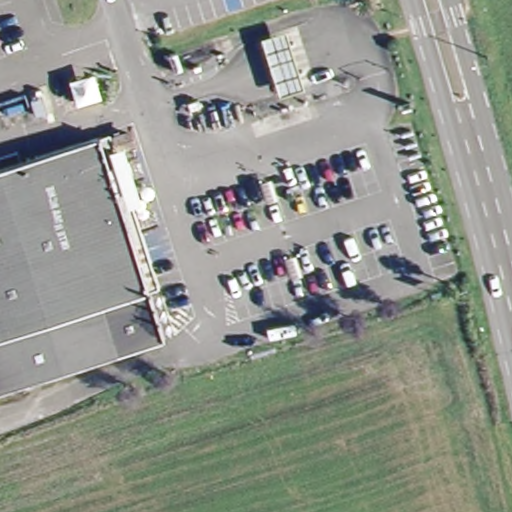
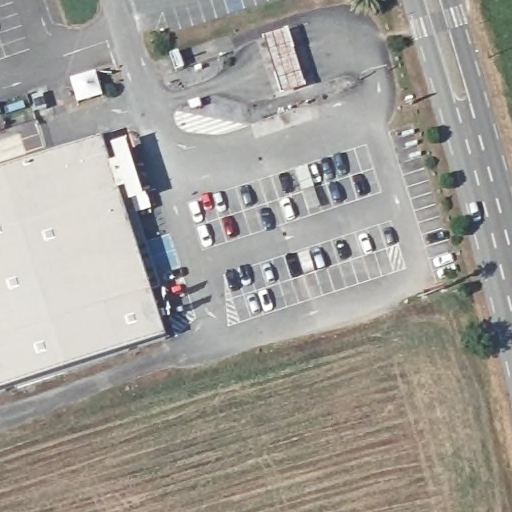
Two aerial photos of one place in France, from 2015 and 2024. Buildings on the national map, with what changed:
unchanged [(292,103),(272,40),(295,32),(315,95),(292,103)]
unchanged [(93,77),(101,104),(77,113),(67,85),(93,77)]
unchanged [(118,142),(163,292),(150,298),(107,145),(118,142)]
unchanged [(140,153),(127,157),(124,148),(137,142),(140,153)]
unchanged [(164,344),(0,396),(0,177),(107,145),(150,298),(164,344)]

